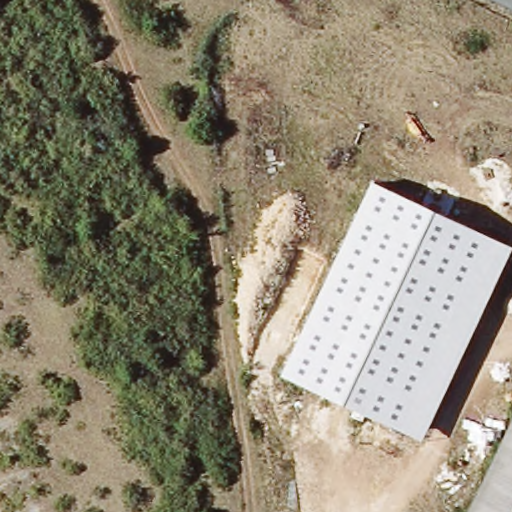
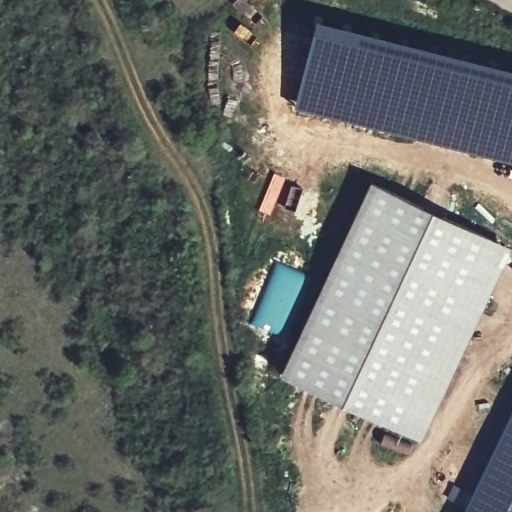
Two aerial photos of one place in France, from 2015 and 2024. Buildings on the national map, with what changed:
new [(316,16),(512,66),(512,163),(293,108),(316,16)]
unchanged [(281,374),(373,182),(512,247),(512,248),(422,441),(281,374)]
unchanged [(463,512),(512,410),(512,512),(463,512)]

